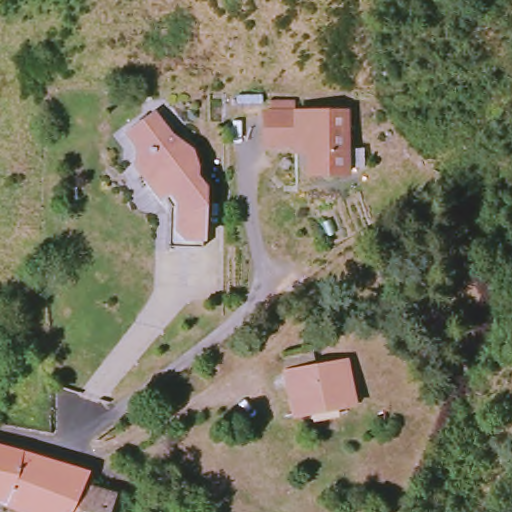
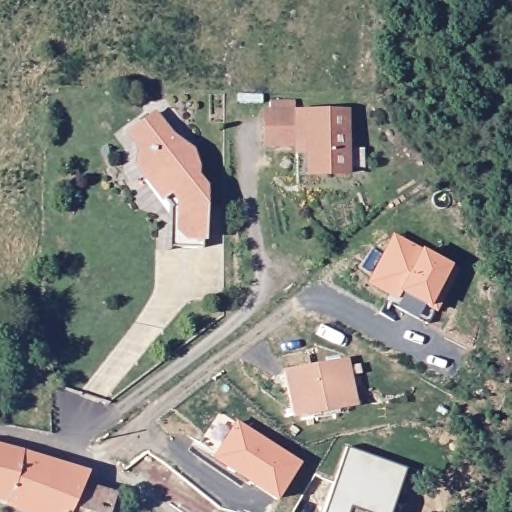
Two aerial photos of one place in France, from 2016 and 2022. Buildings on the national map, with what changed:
unchanged [(301,145),(268,145),(268,113),(352,113),(353,175),(312,176),(311,151),(301,151),(301,145)]
unchanged [(161,117),(176,141),(198,157),(201,175),(201,185),(209,191),(208,252),(173,251),(174,211),(178,209),(172,199),(166,203),(142,171),(145,153),(133,137),(161,117)]
new [(386,301),(387,295),(366,285),(392,234),(458,270),(434,313),(427,324),(386,301)]
unchanged [(354,400),(294,410),(287,366),(346,357),(354,400)]
new [(236,422),(299,462),(276,502),(211,460),(236,422)]
unchanged [(0,498),(0,441),(8,443),(42,455),(76,465),(89,469),(83,482),(67,512),(31,512),(28,510),(0,498)]
new [(344,448),(406,467),(391,512),(322,512),(344,448)]
unchanged [(83,482),(116,492),(110,509),(109,512),(67,512),(83,482)]

